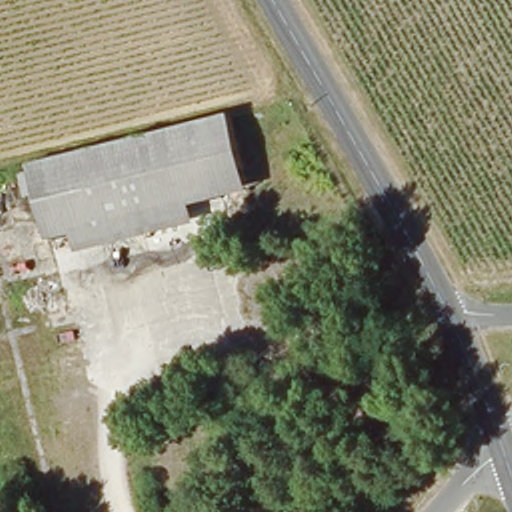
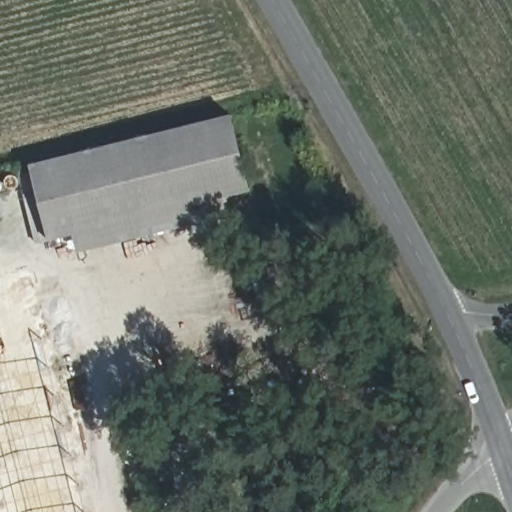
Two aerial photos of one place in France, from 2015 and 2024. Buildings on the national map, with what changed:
unchanged [(189,206),(194,225),(80,252),(76,234),(47,241),(31,165),(232,117),(250,190),(189,206)]

